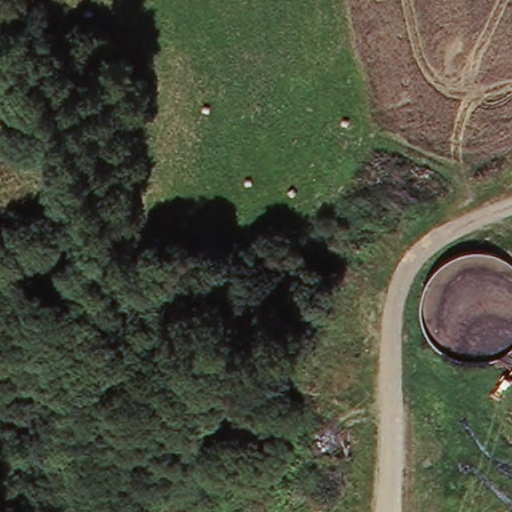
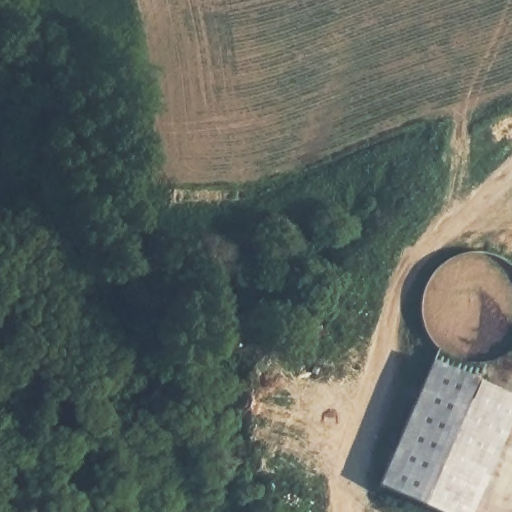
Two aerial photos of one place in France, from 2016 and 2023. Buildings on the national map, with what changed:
new [(443,512),(380,485),(433,360),(512,397),(512,421),(473,512),(443,512)]

